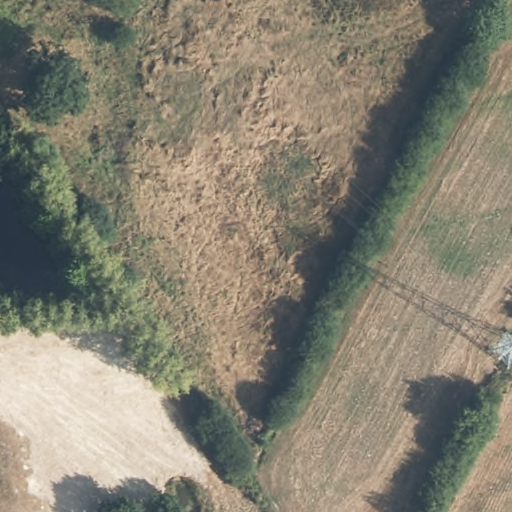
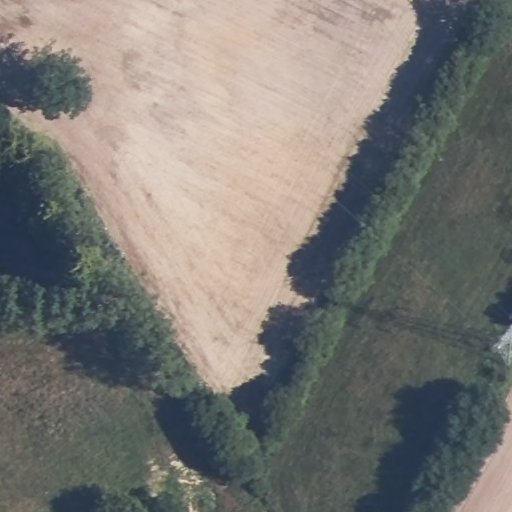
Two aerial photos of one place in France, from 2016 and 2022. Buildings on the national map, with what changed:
[]

